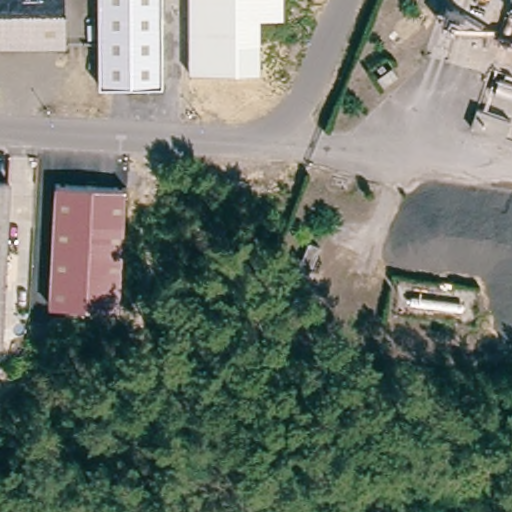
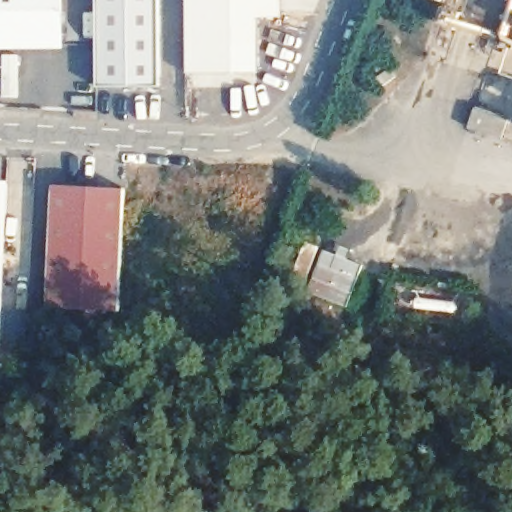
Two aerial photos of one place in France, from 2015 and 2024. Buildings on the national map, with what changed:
unchanged [(0,44),(0,0),(61,0),(61,44),(0,44)]
unchanged [(162,83),(99,84),(99,0),(161,0),(162,83)]
unchanged [(282,16),(260,17),(259,72),(189,73),(188,0),(283,0),(282,16)]
unchanged [(387,70),(392,78),(378,89),(373,80),(387,70)]
unchanged [(504,122),(498,141),(466,130),(473,111),(504,122)]
unchanged [(4,281),(0,281),(0,179),(8,179),(4,281)]
unchanged [(51,304),(57,183),(127,186),(122,308),(51,304)]
unchanged [(300,241),(311,246),(301,272),(289,268),(300,241)]
new [(323,248),(362,264),(345,307),(305,291),(323,248)]
unchanged [(2,342),(0,343),(0,281),(4,281),(2,342)]

